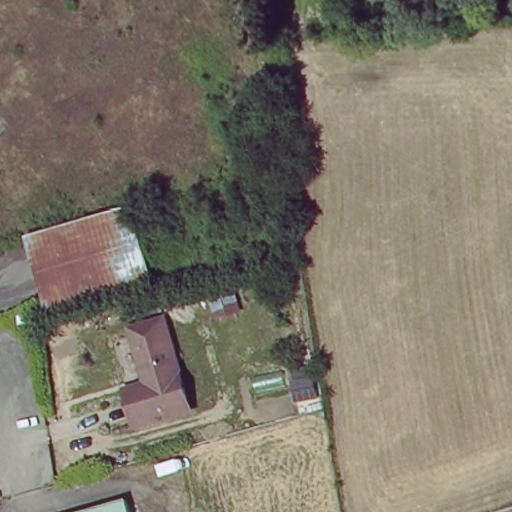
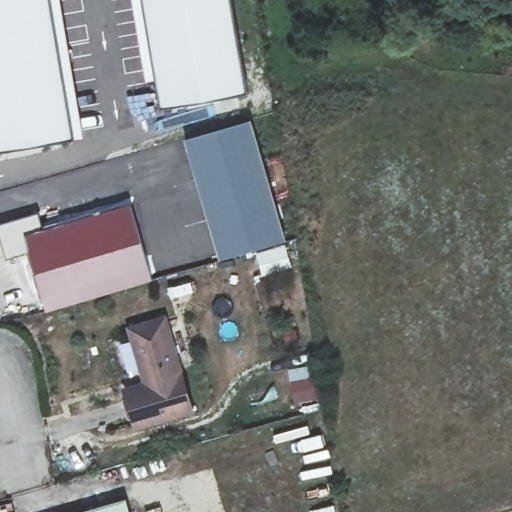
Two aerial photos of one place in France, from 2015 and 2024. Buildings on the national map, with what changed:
new [(84,137),(0,151),(0,0),(61,0),(84,137)]
new [(247,92),(198,102),(161,108),(154,79),(145,36),(140,0),(231,0),(247,92)]
new [(251,120),(280,215),(291,267),(261,276),(255,252),(220,261),(184,139),(251,120)]
unchanged [(22,234),(32,232),(143,201),(160,272),(45,305),(22,234)]
unchanged [(125,388),(143,384),(131,331),(173,320),(195,413),(135,427),(125,388)]
unchanged [(131,512),(80,512),(127,497),(131,512)]

